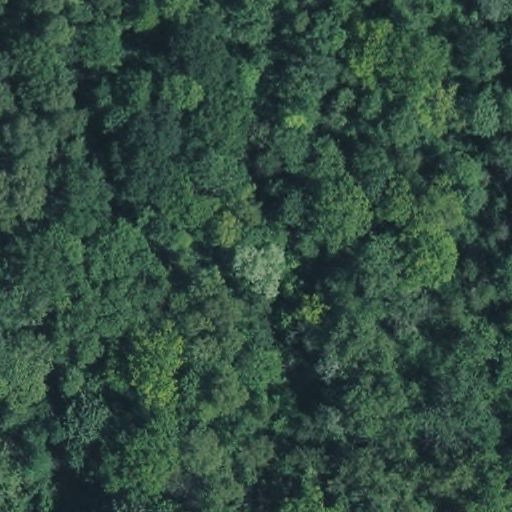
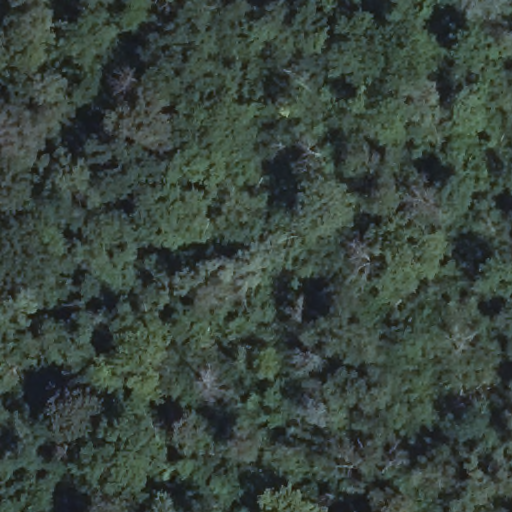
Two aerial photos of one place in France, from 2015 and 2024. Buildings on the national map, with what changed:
[]

